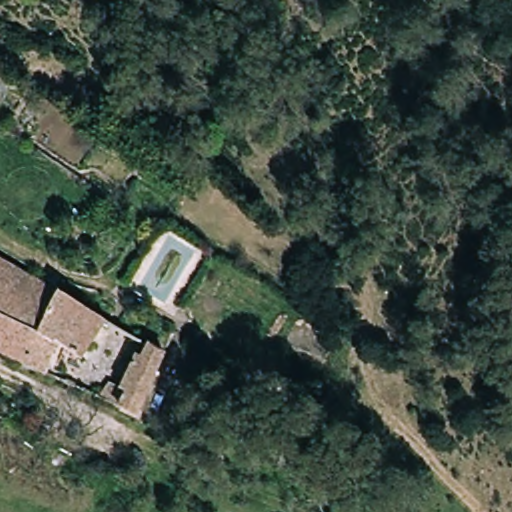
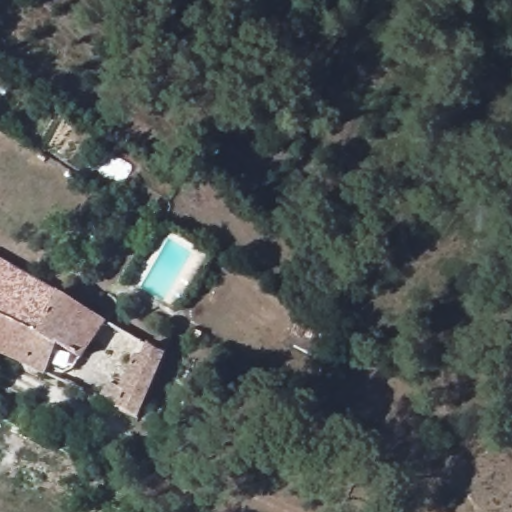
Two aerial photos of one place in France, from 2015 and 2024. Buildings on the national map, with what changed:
unchanged [(141,358),(116,344),(113,348),(99,341),(87,361),(64,350),(49,379),(0,356),(0,261),(168,357),(140,422),(102,405),(111,385),(126,391),(141,358)]

